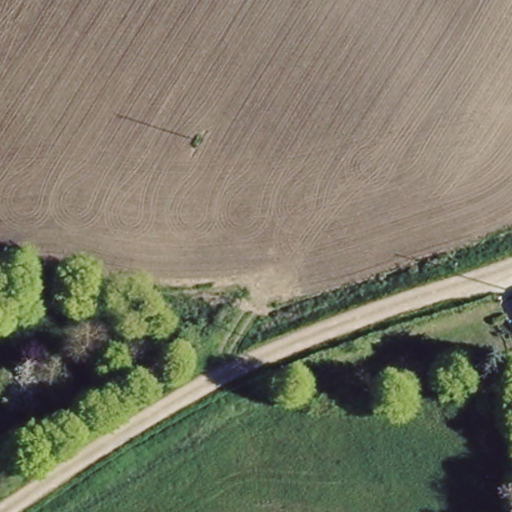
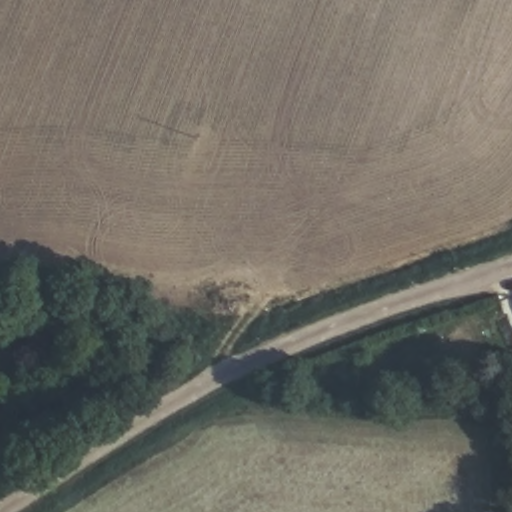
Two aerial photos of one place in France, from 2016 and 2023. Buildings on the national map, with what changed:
[]

